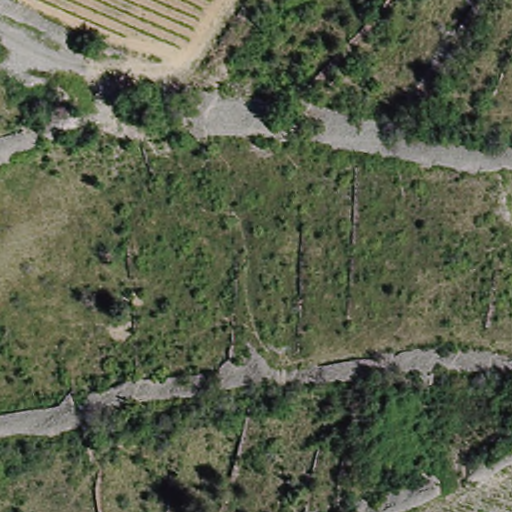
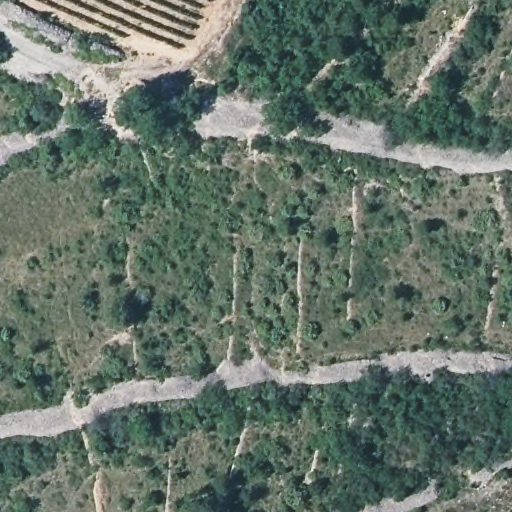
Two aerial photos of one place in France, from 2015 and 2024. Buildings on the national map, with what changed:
[]

